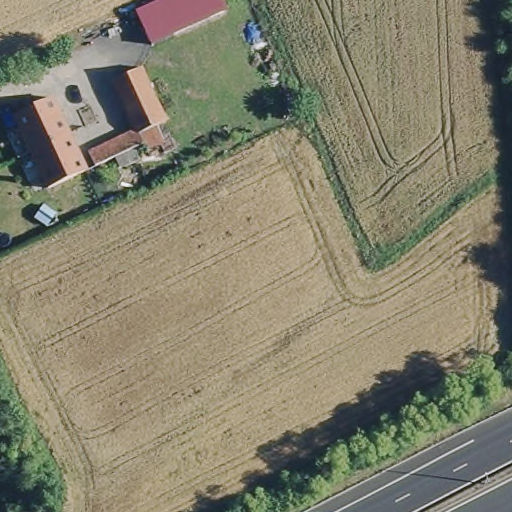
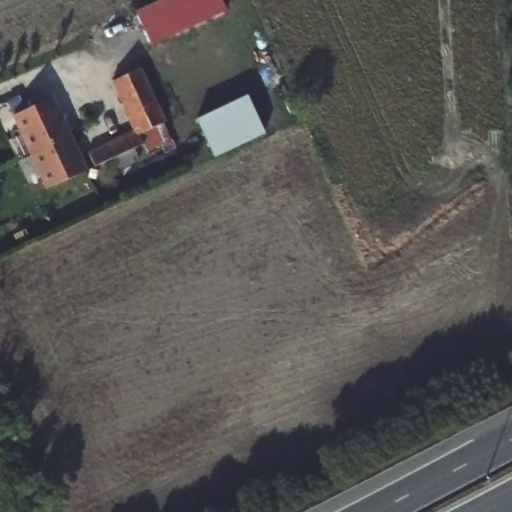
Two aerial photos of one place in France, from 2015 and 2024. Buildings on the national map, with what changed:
unchanged [(163,0),(223,0),(228,11),(150,46),(134,12),(163,0)]
unchanged [(79,89),(72,73),(88,66),(99,93),(67,110),(68,116),(60,121),(77,157),(135,133),(113,84),(150,68),(173,121),(145,133),(149,146),(135,152),(140,162),(134,165),(127,167),(118,171),(114,163),(51,191),(45,194),(12,120),(79,89)]
new [(246,96),(265,134),(215,158),(197,121),(246,96)]

